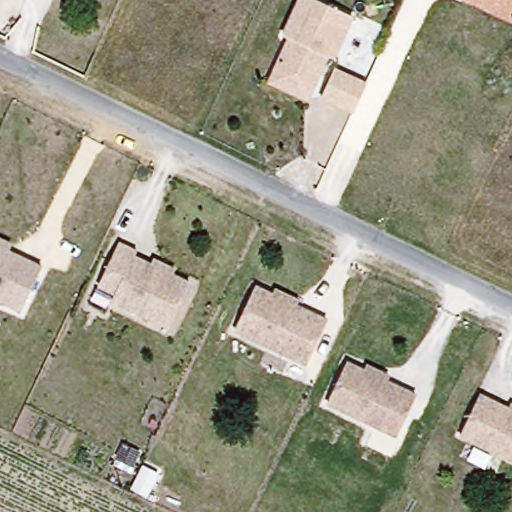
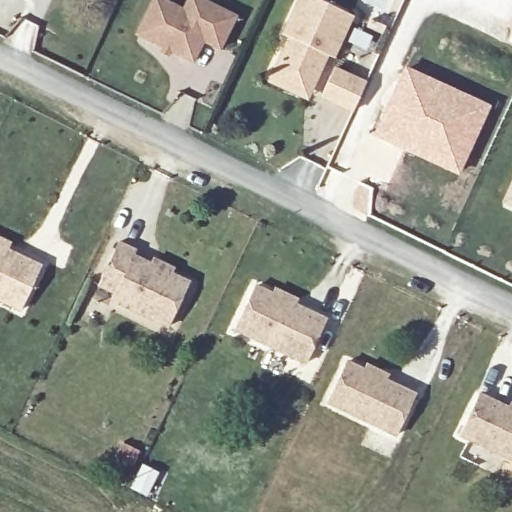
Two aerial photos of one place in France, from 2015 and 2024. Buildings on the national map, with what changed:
new [(149,0),(162,0),(180,9),(184,0),(200,0),(214,7),(232,16),(216,49),(199,40),(189,61),(166,50),(163,55),(156,52),(159,46),(132,32),(149,0)]
unchanged [(336,57),(327,54),(309,97),(268,80),(286,37),(279,34),(294,0),(322,0),(355,14),(336,57)]
unchanged [(368,79),(352,113),(318,98),(333,65),(368,79)]
new [(404,65),(491,105),(458,176),(372,136),(404,65)]
new [(512,208),(503,204),(512,183),(512,208)]
unchanged [(12,239),(8,249),(42,263),(21,311),(0,301),(0,234),(12,239)]
unchanged [(120,244),(137,252),(135,257),(149,263),(152,257),(174,269),(173,275),(189,282),(167,326),(98,288),(120,244)]
unchanged [(253,284),(272,293),(275,287),(298,298),(295,306),(325,318),(304,365),(230,331),(253,284)]
unchanged [(392,437),(325,402),(343,365),(360,373),(365,366),(386,377),(382,385),(411,399),(392,437)]
unchanged [(483,393),(511,407),(512,404),(512,457),(464,433),(483,393)]

